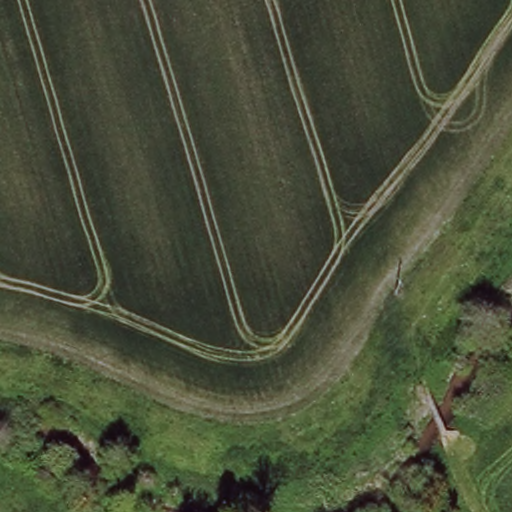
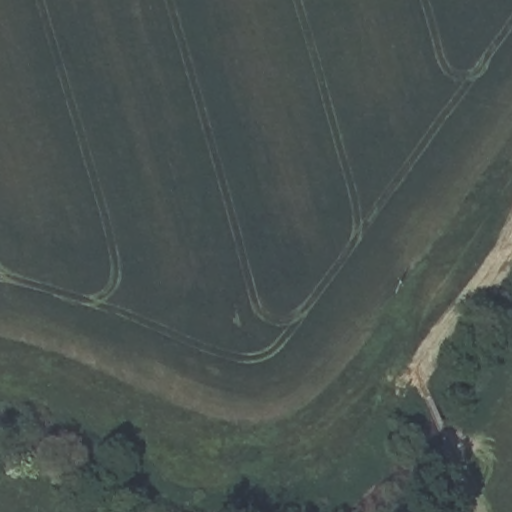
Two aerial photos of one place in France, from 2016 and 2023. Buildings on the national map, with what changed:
[]

